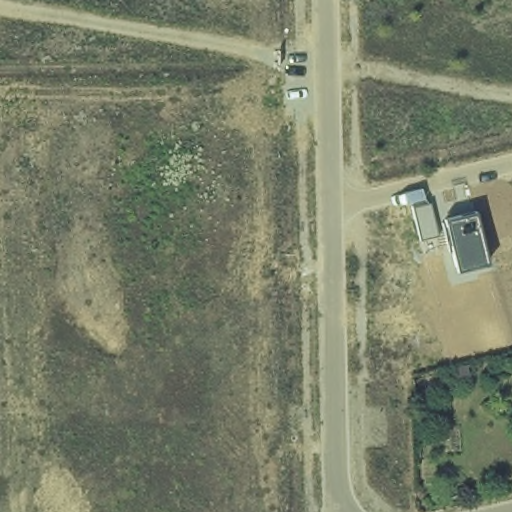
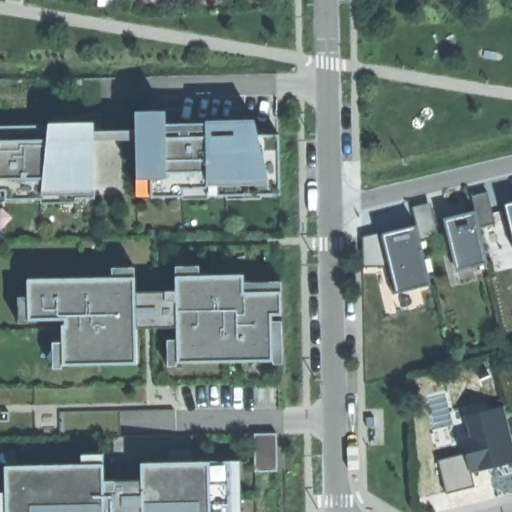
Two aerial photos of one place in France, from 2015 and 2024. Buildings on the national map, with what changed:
new [(65,123),(93,122),(94,130),(135,130),(135,110),(165,110),(165,121),(233,120),(233,123),(250,123),(250,134),(278,134),(280,194),(260,194),(260,185),(227,185),(227,195),(207,195),(207,188),(184,188),(183,196),(151,197),(150,178),(137,177),(135,139),(93,139),(95,198),(75,198),(75,189),(42,189),(41,199),(5,199),(5,190),(0,190),(0,125),(65,125),(65,123)]
unchanged [(471,195),(487,192),(495,223),(479,228),(487,263),(456,270),(443,218),(475,210),(471,195)]
new [(430,202),(438,235),(420,240),(413,207),(430,202)]
new [(512,202),(512,241),(502,204),(512,202)]
new [(452,251),(422,258),(428,284),(395,294),(388,263),(363,264),(363,237),(382,234),(414,227),(419,244),(448,238),(452,251)]
new [(168,364),(167,337),(173,337),(173,324),(133,324),(133,363),(55,364),(53,340),(67,340),(68,319),(15,321),(15,295),(28,294),(28,279),(110,278),(110,264),(134,265),(133,290),(175,290),(175,264),(200,264),(200,275),(245,276),(244,281),(282,281),(283,364),(168,364)]
new [(470,472),(473,486),(447,493),(438,459),(465,452),(461,438),(470,436),(464,415),(503,406),(512,440),(512,463),(470,472)]
new [(277,433),(277,471),(255,472),(254,434),(277,433)]
new [(0,491),(6,491),(6,463),(80,462),(80,453),(103,453),(104,478),(140,479),(142,461),(210,462),(240,461),(241,512),(0,512),(0,491)]

